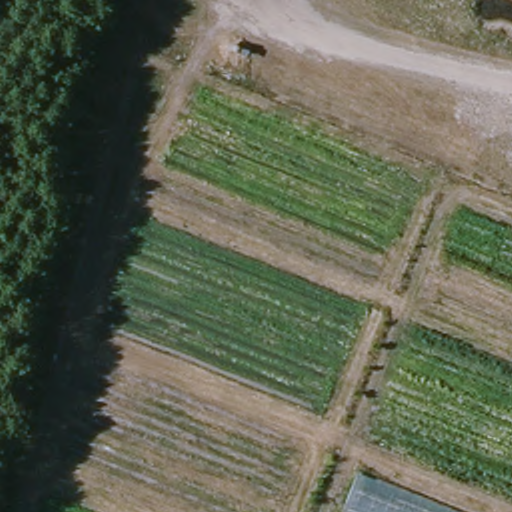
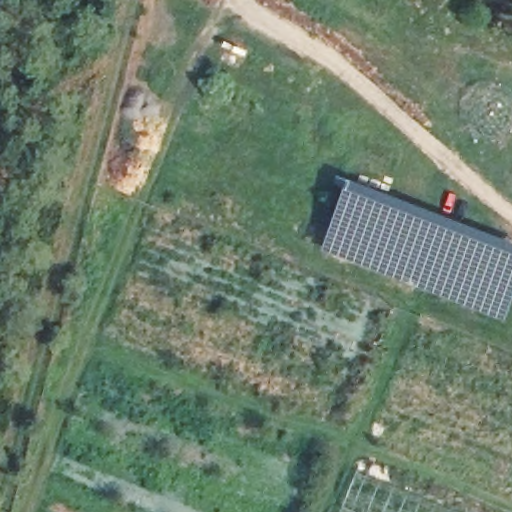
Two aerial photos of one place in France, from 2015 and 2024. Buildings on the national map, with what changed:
new [(512,244),(512,307),(507,322),(322,252),(349,182),(512,244)]
new [(462,512),(342,512),(358,472),(462,512)]

